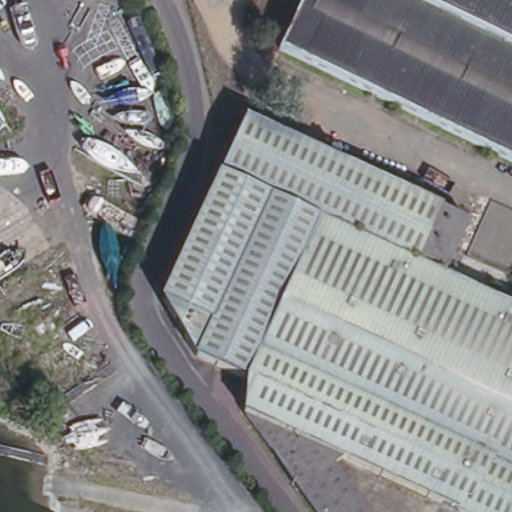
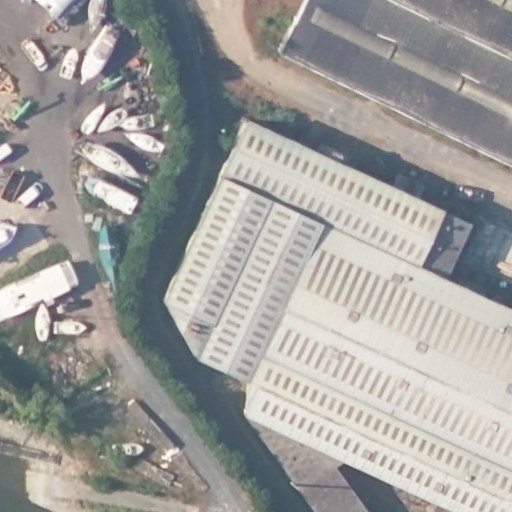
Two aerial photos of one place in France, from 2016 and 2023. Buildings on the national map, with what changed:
unchanged [(301,0),(512,0),(512,164),(278,52),(301,0)]
unchanged [(388,187),(396,172),(423,184),(416,200),(468,223),(445,275),(462,283),(464,278),(488,290),(486,294),(497,300),(503,290),(459,269),(485,213),(512,226),(512,512),(460,512),(337,454),(330,467),(363,512),(317,512),(298,486),(247,414),(245,382),(209,362),(199,357),(164,299),(213,196),(248,122),(388,187)]

